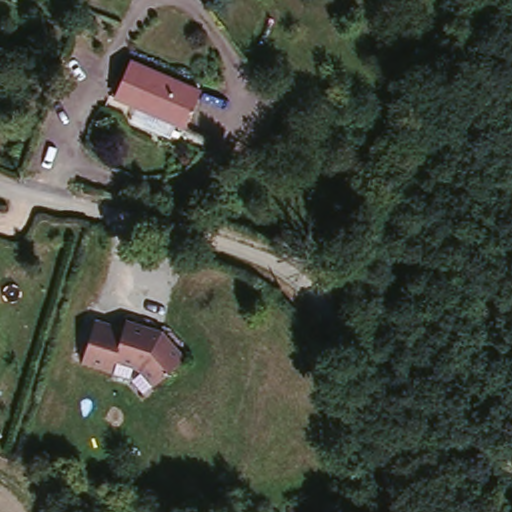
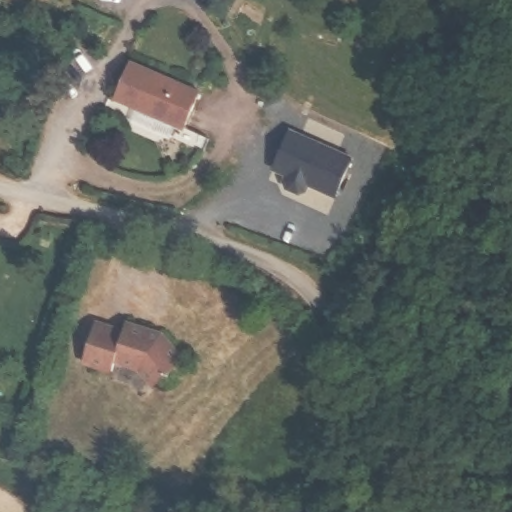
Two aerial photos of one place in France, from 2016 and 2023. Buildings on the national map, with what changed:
unchanged [(182,124),(117,93),(133,57),(199,89),(182,124)]
new [(338,193),(309,181),(307,187),(300,190),(289,185),(286,180),(288,173),(274,167),(292,124),(355,151),(338,193)]
unchanged [(128,325),(130,317),(165,329),(184,356),(153,380),(141,365),(118,356),(114,366),(85,357),(100,315),(128,325)]

